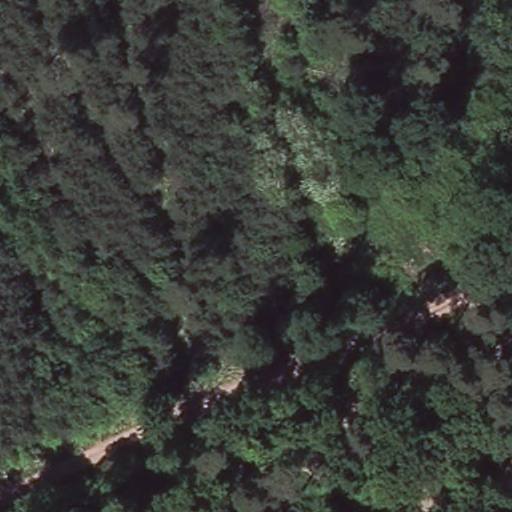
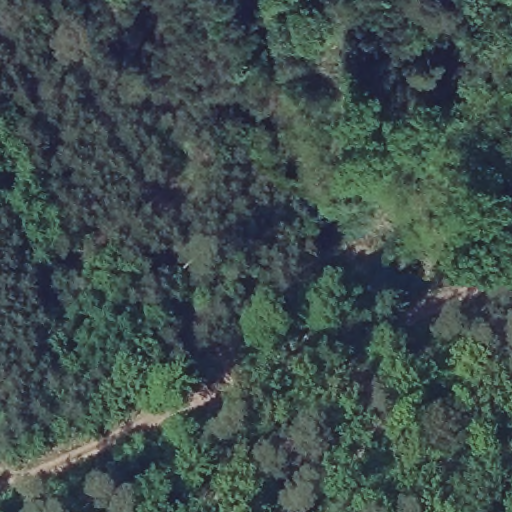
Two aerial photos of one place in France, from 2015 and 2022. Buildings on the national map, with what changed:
unchanged [(93,296),(107,323),(91,329),(77,304),(93,296)]

